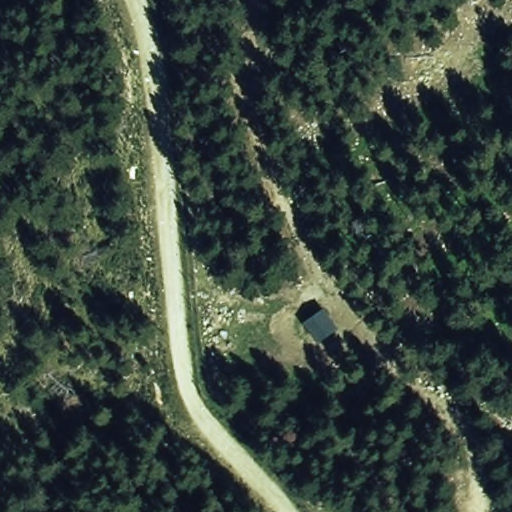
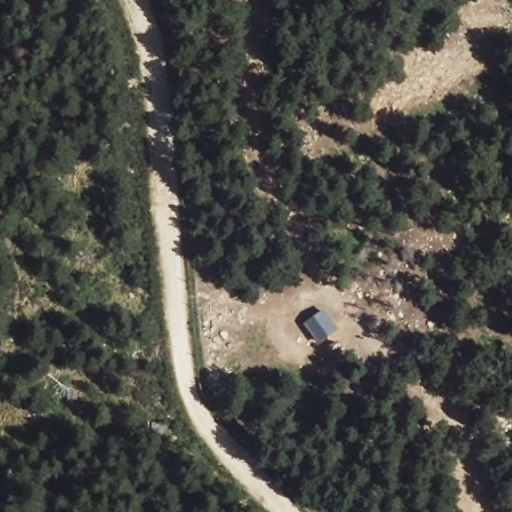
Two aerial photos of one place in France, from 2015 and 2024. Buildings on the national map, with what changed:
unchanged [(318,346),(300,319),(322,305),(340,332),(318,346)]

